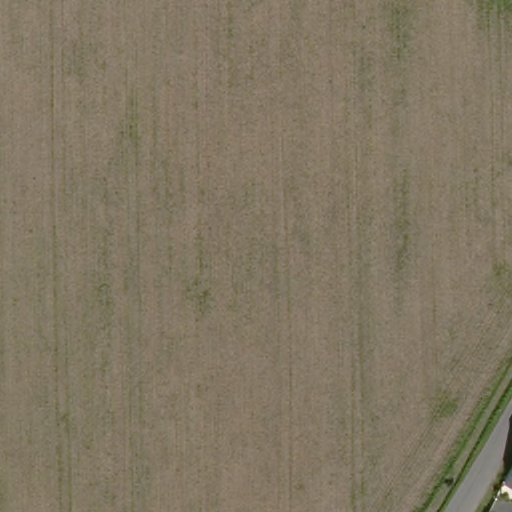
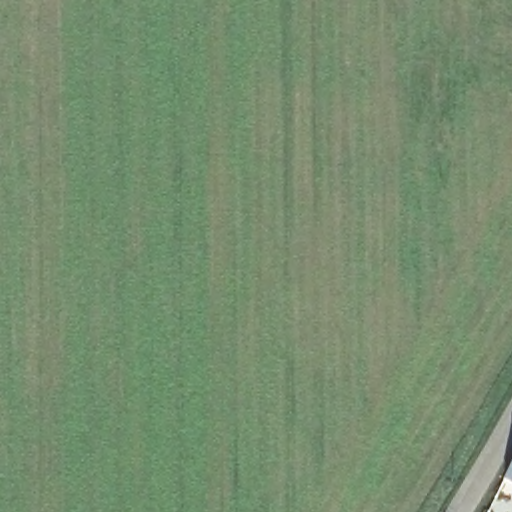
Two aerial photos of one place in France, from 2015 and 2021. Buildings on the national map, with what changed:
unchanged [(508,477),(512,470),(512,479),(508,477)]

